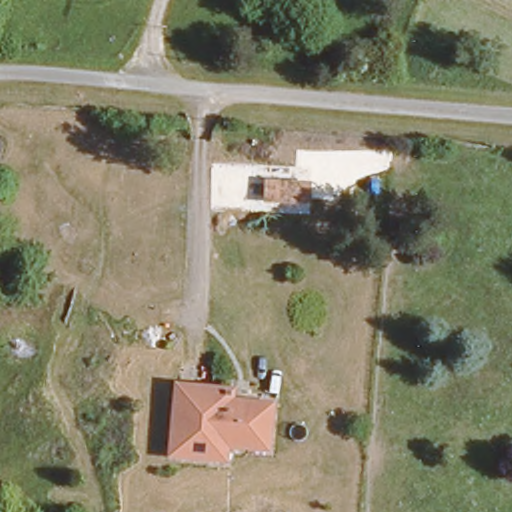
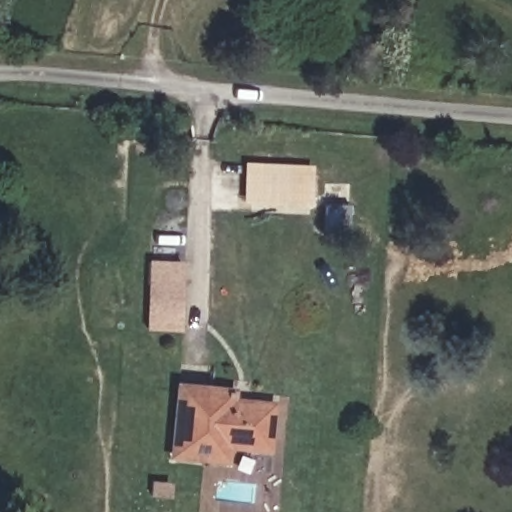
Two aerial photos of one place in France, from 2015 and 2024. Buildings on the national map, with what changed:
new [(241,202),(244,161),(312,165),(310,206),(241,202)]
new [(347,229),(324,227),(325,203),(349,205),(347,229)]
new [(180,330),(146,330),(147,259),(181,260),(180,330)]
unchanged [(212,453),(175,450),(181,378),(214,381),(226,382),(227,396),(273,400),(270,443),(231,440),(230,455),(212,453)]

